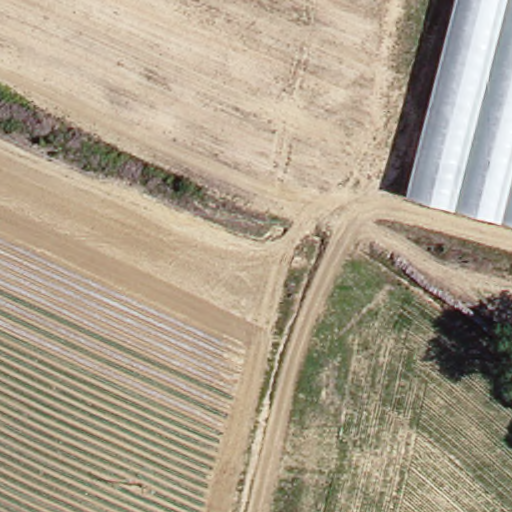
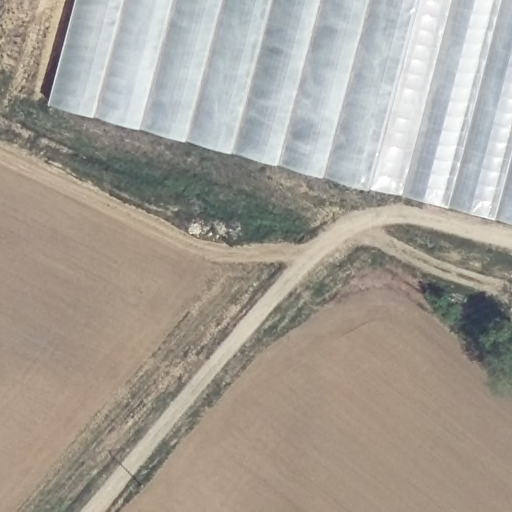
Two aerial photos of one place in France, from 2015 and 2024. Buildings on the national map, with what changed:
new [(406,191),(50,101),(75,0),(454,0),(406,191)]
new [(406,191),(454,0),(512,0),(512,219),(406,191)]

